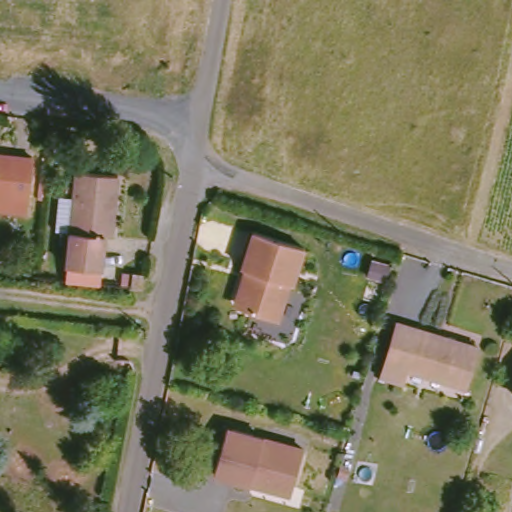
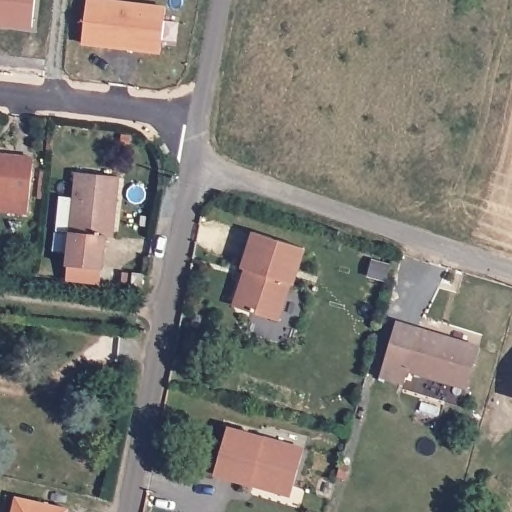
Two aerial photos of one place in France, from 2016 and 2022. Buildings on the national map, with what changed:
new [(35,0),(32,26),(0,23),(0,0),(35,0)]
new [(97,0),(166,7),(161,51),(83,43),(87,0),(97,0)]
unchanged [(22,159),(18,201),(0,200),(0,157),(22,159)]
unchanged [(110,177),(108,210),(102,210),(93,271),(59,266),(64,235),(50,233),(54,195),(69,196),(71,174),(110,177)]
unchanged [(301,250),(289,286),(287,286),(275,323),(240,312),(235,302),(240,286),(246,282),(249,273),(241,270),(253,235),(301,250)]
unchanged [(133,270),(146,272),(143,292),(131,290),(133,270)]
unchanged [(120,287),(121,276),(132,277),(131,288),(120,287)]
unchanged [(478,345),(468,386),(407,369),(403,382),(379,376),(394,323),(478,345)]
unchanged [(253,483),(216,472),(226,435),(303,457),(295,486),(293,494),(253,483)]
new [(16,496),(69,507),(68,512),(12,512),(16,496)]

